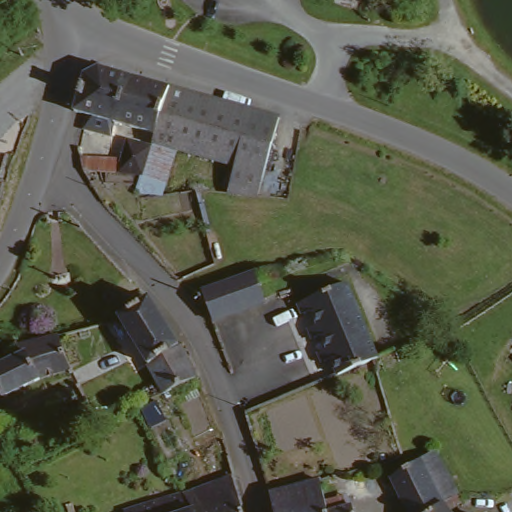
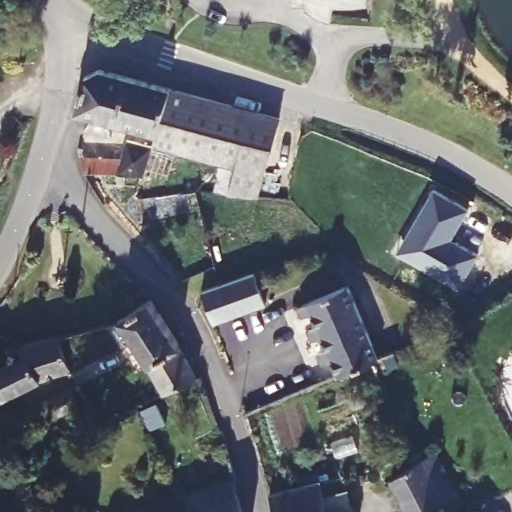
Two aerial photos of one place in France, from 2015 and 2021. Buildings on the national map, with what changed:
unchanged [(122,124),(117,137),(92,130),(96,117),(82,114),(94,66),(177,87),(165,136),(122,124)]
unchanged [(243,166),(162,144),(165,136),(177,87),(283,119),(265,181),(262,190),(237,184),(238,182),(243,166)]
unchanged [(130,162),(136,141),(161,149),(152,181),(126,181),(92,181),(89,162),(130,162)]
new [(409,215),(416,213),(414,206),(426,185),(461,205),(444,236),(446,240),(450,239),(472,251),(452,286),(399,257),(389,251),(395,241),(409,215)]
unchanged [(254,270),(267,299),(215,321),(201,292),(209,290),(254,270)]
unchanged [(383,360),(379,362),(352,374),(340,379),(333,362),(325,365),(320,354),(328,350),(322,337),(316,340),(311,330),(320,326),(315,317),(308,320),(301,306),(351,286),(382,357),(383,360)]
unchanged [(117,314),(149,293),(191,355),(201,377),(169,395),(120,316),(117,314)]
unchanged [(23,350),(19,340),(57,330),(71,368),(37,376),(23,350)]
unchanged [(3,398),(0,393),(0,366),(23,350),(37,376),(3,398)]
unchanged [(42,411),(64,400),(71,412),(50,425),(46,420),(42,411)]
unchanged [(417,463),(442,451),(464,496),(432,512),(415,512),(396,473),(417,463)]
unchanged [(251,512),(201,512),(199,503),(194,504),(190,492),(240,475),(251,512)]
unchanged [(354,505),(356,512),(276,512),(272,494),(322,479),(330,511),(354,505)]
unchanged [(199,503),(201,512),(169,512),(165,499),(171,497),(170,492),(177,490),(179,495),(190,492),(194,504),(199,503)]
unchanged [(466,500),(469,506),(459,512),(432,512),(464,496),(466,500)]

